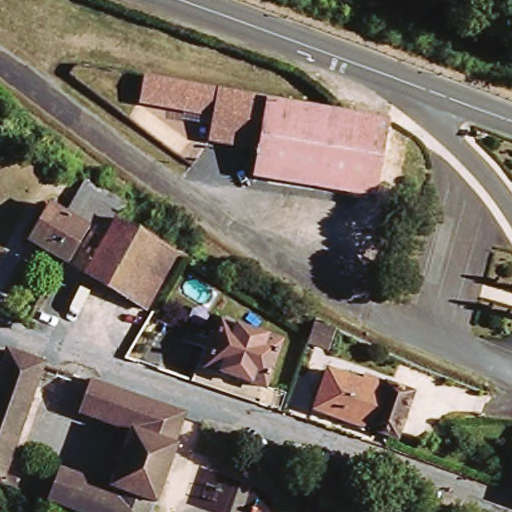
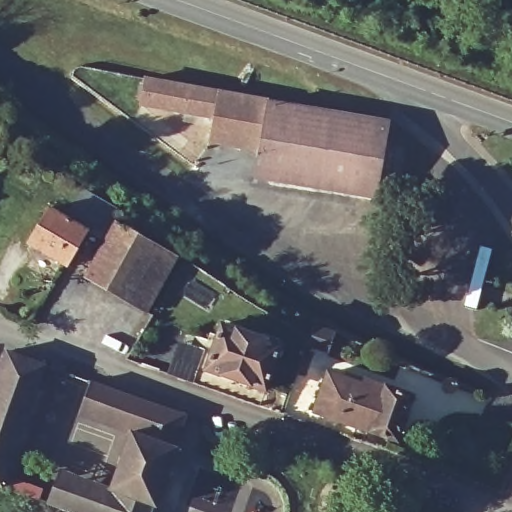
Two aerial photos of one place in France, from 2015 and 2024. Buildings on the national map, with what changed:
unchanged [(386,117),(373,195),(253,174),(257,148),(207,140),(211,117),(137,102),(141,77),(355,112),(386,117)]
unchanged [(66,267),(26,245),(45,211),(70,224),(74,217),(75,215),(88,222),(87,225),(83,231),(85,233),(66,267)]
unchanged [(103,238),(113,220),(174,255),(143,309),(83,274),(103,238)]
unchanged [(188,330),(191,321),(212,328),(213,323),(221,325),(225,312),(285,332),(265,393),(196,370),(208,337),(188,330)]
unchanged [(342,331),(337,346),(307,336),(312,322),(342,331)]
unchanged [(5,349),(43,362),(0,484),(0,365),(5,349)]
unchanged [(341,375),(390,393),(397,396),(383,434),(327,414),(341,375)]
unchanged [(63,508),(46,502),(58,466),(110,485),(128,431),(77,413),(90,379),(185,412),(173,444),(177,445),(155,504),(152,503),(149,512),(74,512),(63,508)]

